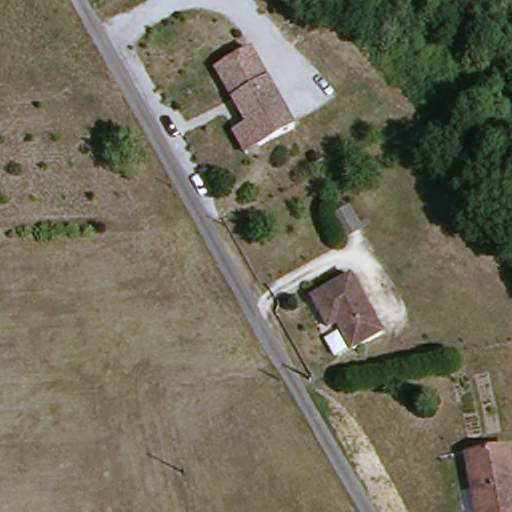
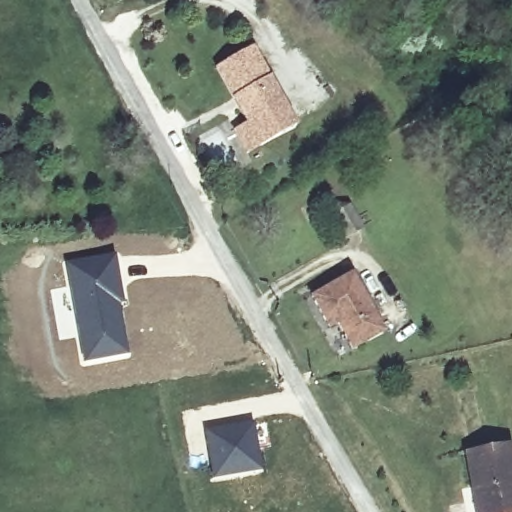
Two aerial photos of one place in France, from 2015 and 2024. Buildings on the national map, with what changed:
unchanged [(237,134),(250,126),(242,114),(236,102),(217,72),(252,52),(297,130),(263,150),(250,157),(237,134)]
new [(115,254),(124,304),(119,306),(129,355),(82,363),(65,261),(115,254)]
unchanged [(361,274),(394,333),(364,351),(348,327),(337,333),(318,298),(361,274)]
new [(254,420),(264,470),(211,479),(204,428),(254,420)]
unchanged [(475,447),(512,444),(512,512),(479,512),(475,447)]

